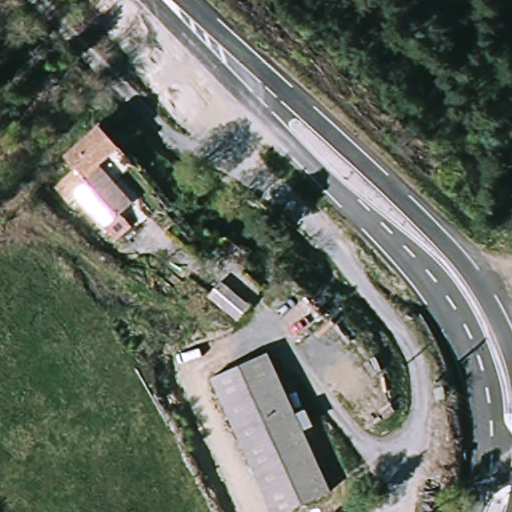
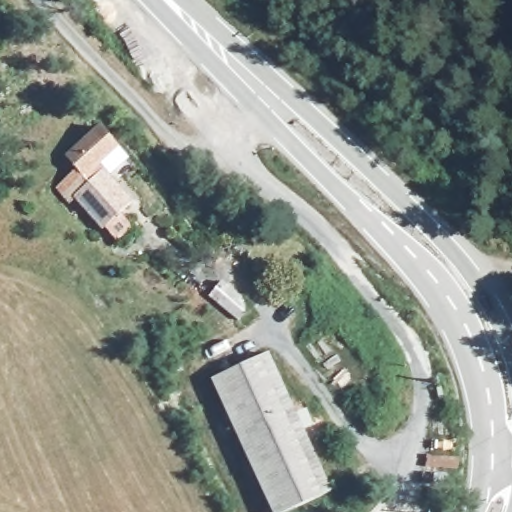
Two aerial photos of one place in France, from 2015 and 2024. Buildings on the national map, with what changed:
unchanged [(105,231),(69,205),(57,190),(74,173),(65,158),(97,128),(115,150),(99,166),(131,203),(105,231)]
unchanged [(253,312),(238,325),(211,297),(228,283),(253,312)]
unchanged [(275,512),(207,382),(259,355),(311,451),(330,489),(312,498),(284,512),(275,512)]

